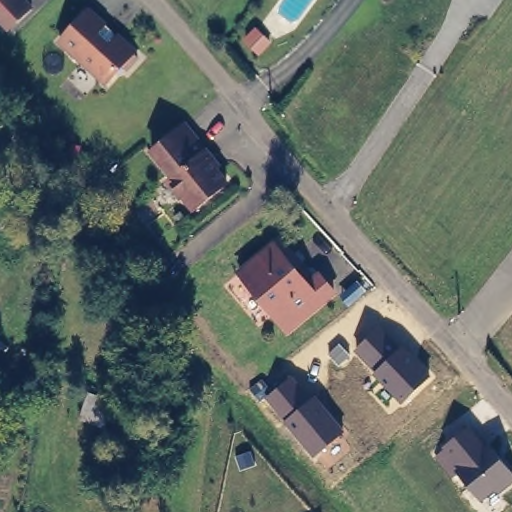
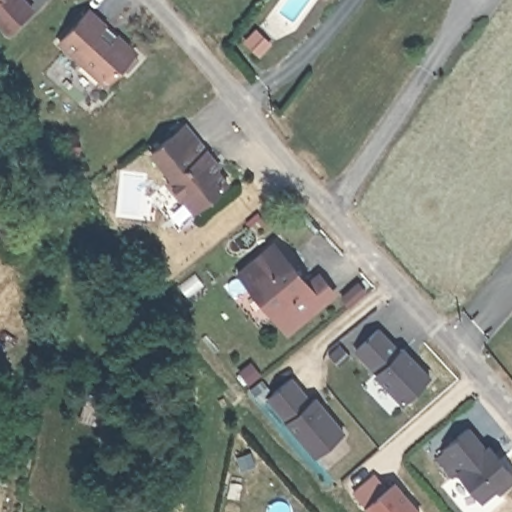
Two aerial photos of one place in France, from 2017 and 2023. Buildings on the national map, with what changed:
new [(32,6),(8,28),(0,19),(0,0),(26,0),(32,6)]
unchanged [(83,9),(100,24),(94,31),(106,41),(112,35),(130,50),(101,82),(55,40),(83,9)]
unchanged [(250,30),(263,44),(253,54),(240,40),(250,30)]
unchanged [(207,157),(205,159),(221,178),(188,205),(177,192),(175,195),(160,178),(165,174),(145,149),(176,121),(207,157)]
unchanged [(275,303),(239,265),(273,234),(308,272),(317,265),(333,282),(298,313),(290,321),(275,303)]
unchanged [(380,328),(397,349),(402,345),(430,376),(401,405),(372,375),(375,371),(355,350),(380,328)]
unchanged [(293,377),(311,400),(316,395),(345,431),(314,457),(265,398),(293,377)]
unchanged [(512,473),(512,484),(498,495),(495,491),(481,502),(455,473),(452,475),(437,456),(444,450),(442,448),(471,425),(512,473)]
new [(366,505),(353,491),(376,475),(388,488),(396,482),(421,512),(367,512),(363,507),(366,505)]

